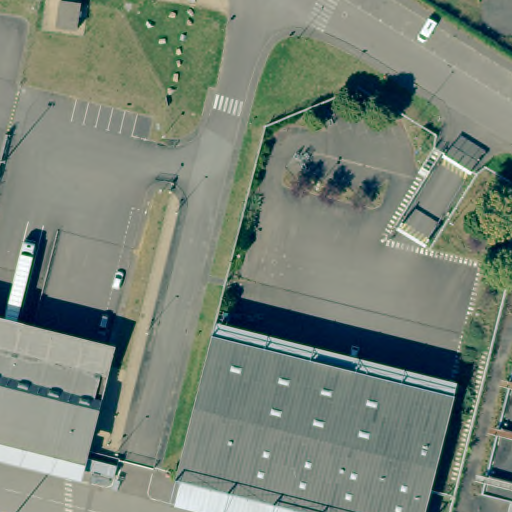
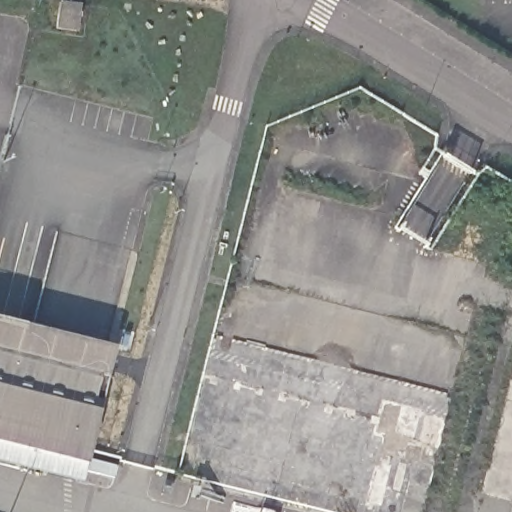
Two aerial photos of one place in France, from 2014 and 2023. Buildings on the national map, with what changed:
unchanged [(112,367),(106,391),(0,366),(0,338),(112,367)]
demolished [(288,512),(174,482),(209,340),(399,388),(432,482),(424,512),(288,512)]
unchanged [(106,391),(101,417),(92,414),(81,463),(0,442),(0,366),(106,391)]
demolished [(512,376),(512,493),(486,486),(512,376)]
demolished [(399,388),(419,392),(453,401),(439,452),(432,482),(399,388)]

